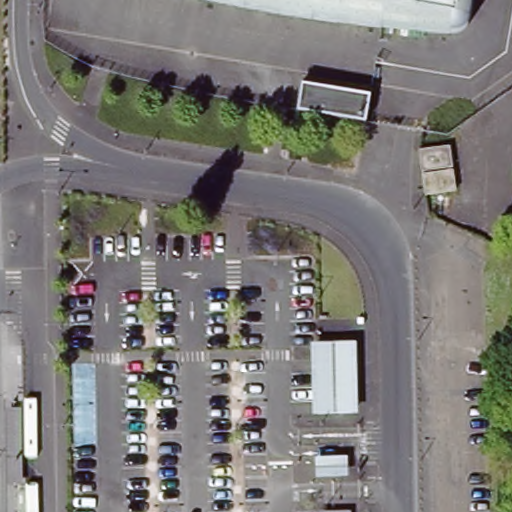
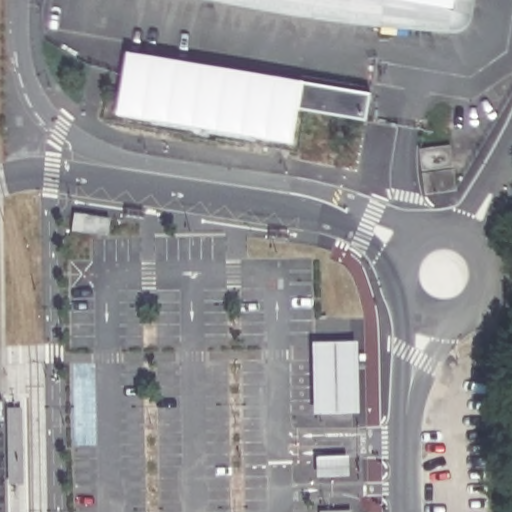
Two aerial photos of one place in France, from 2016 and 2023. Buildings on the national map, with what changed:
unchanged [(466,24),(465,28),(464,31),(462,34),(461,36),(458,37),(455,39),(451,40),(413,38),(368,33),(318,26),(275,19),(217,8),(176,0),(471,0),(467,21),(466,24)]
new [(293,111),(289,145),(116,115),(126,54),(298,84),(293,111)]
unchanged [(298,84),(383,99),(378,126),(293,111),(298,84)]
unchanged [(446,150),(447,170),(422,173),(420,153),(446,150)]
unchanged [(450,193),(425,196),(423,177),(448,175),(450,193)]
unchanged [(355,347),(357,418),(321,419),(320,348),(355,347)]
unchanged [(5,486),(6,410),(22,411),(23,487),(5,486)]
unchanged [(339,467),(340,482),(316,482),(316,467),(339,467)]

